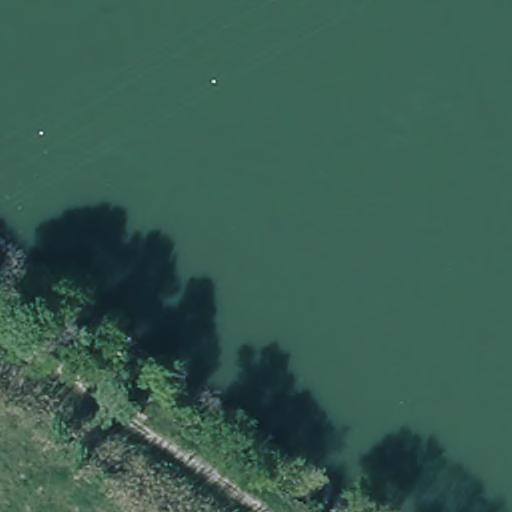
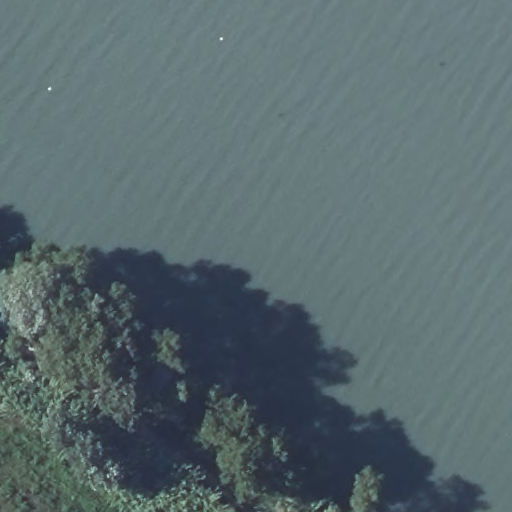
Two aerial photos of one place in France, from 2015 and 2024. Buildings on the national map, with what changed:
[]

